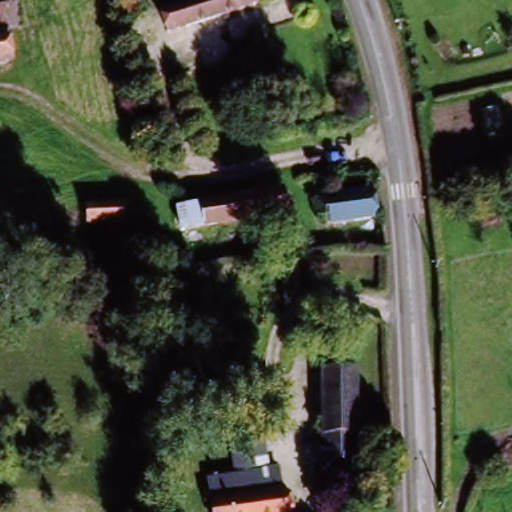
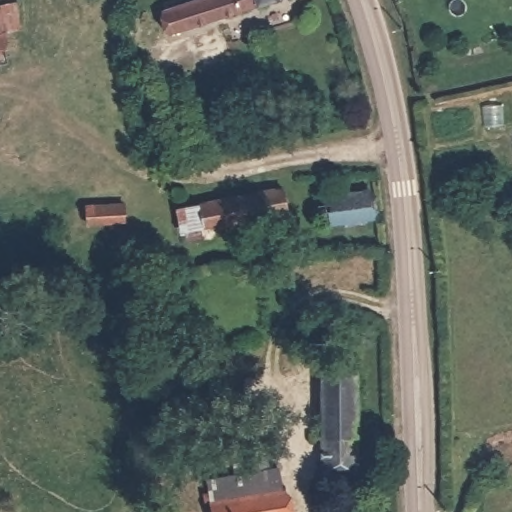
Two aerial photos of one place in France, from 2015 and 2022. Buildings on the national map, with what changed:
unchanged [(170,28),(165,4),(182,0),(310,0),(170,28)]
unchanged [(13,36),(0,38),(0,13),(11,12),(13,36)]
unchanged [(0,63),(0,38),(13,36),(15,61),(0,63)]
unchanged [(256,222),(174,231),(174,205),(288,189),(291,219),(255,227),(256,222)]
unchanged [(368,225),(322,227),(318,190),(370,189),(368,225)]
unchanged [(124,226),(83,225),(81,200),(124,200),(124,226)]
unchanged [(256,240),(178,245),(174,231),(256,222),(255,227),(256,240)]
unchanged [(356,475),(316,475),(321,370),(357,367),(356,475)]
unchanged [(210,512),(205,473),(231,471),(228,445),(262,443),(268,467),(277,466),(280,512),(210,512)]

